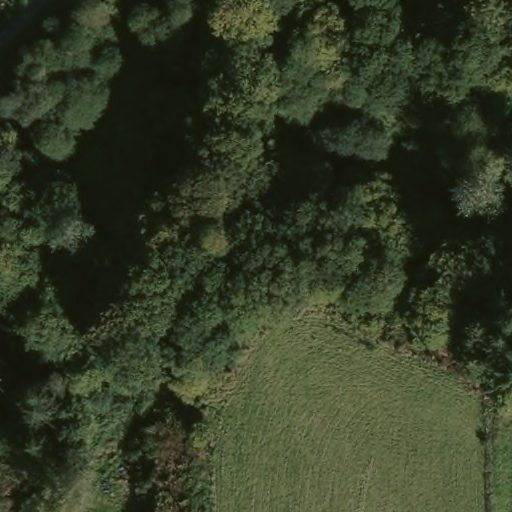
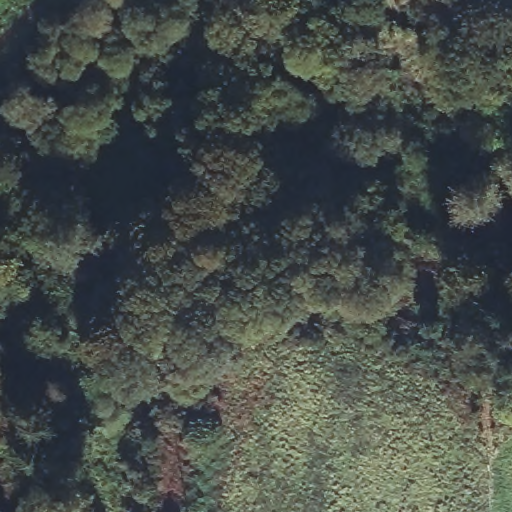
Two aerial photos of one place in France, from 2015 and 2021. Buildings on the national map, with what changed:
[]

